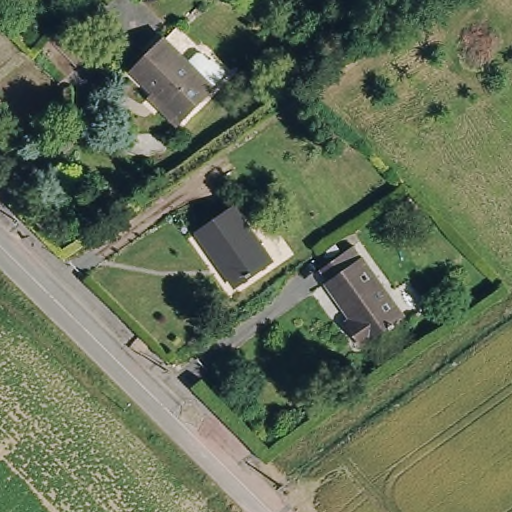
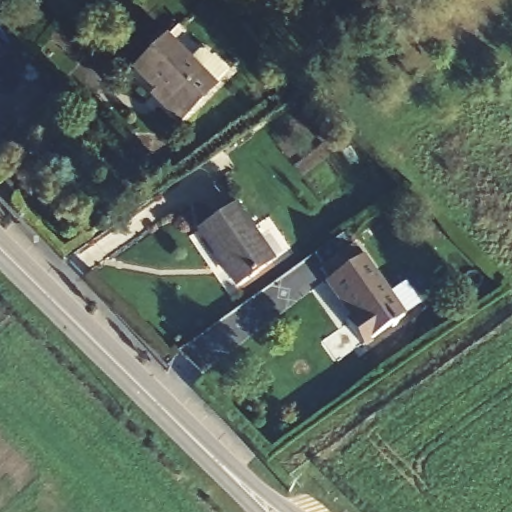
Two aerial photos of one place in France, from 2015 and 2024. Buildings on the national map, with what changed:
unchanged [(209,90),(177,119),(131,68),(164,40),(209,90)]
unchanged [(270,259),(232,285),(196,232),(233,207),(270,259)]
unchanged [(401,319),(357,346),(345,327),(355,319),(320,269),(355,248),(401,319)]

